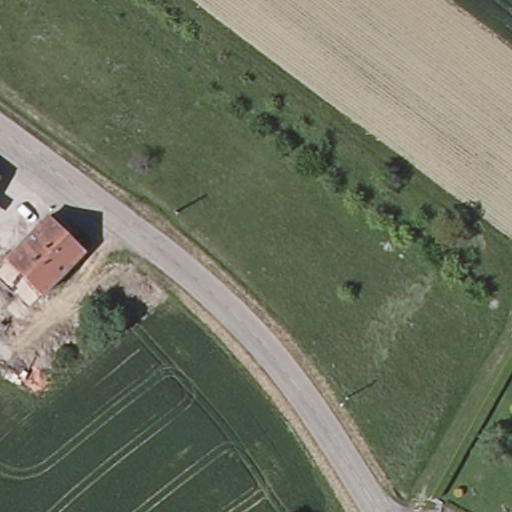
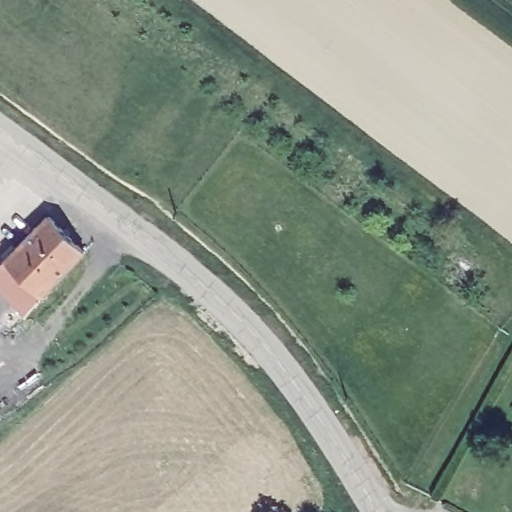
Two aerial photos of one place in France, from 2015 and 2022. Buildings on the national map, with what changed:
unchanged [(81,252),(38,297),(5,262),(47,218),(81,252)]

